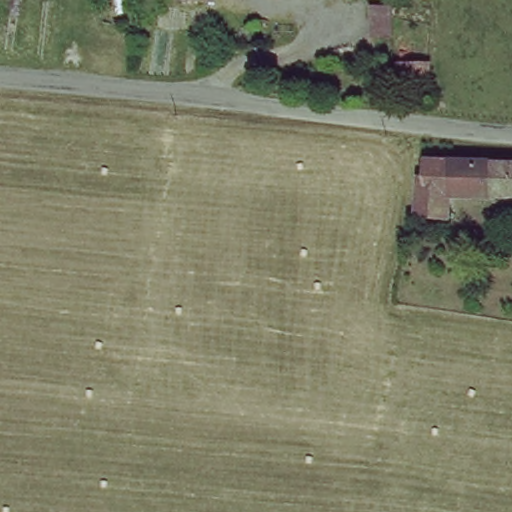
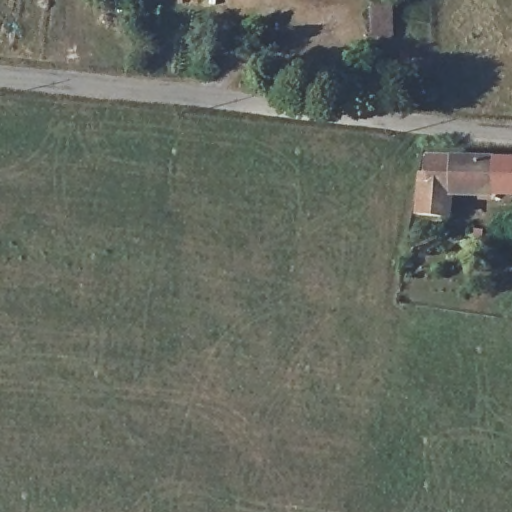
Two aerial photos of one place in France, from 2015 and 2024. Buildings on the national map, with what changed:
unchanged [(160,4),(160,0),(189,0),(188,6),(160,4)]
unchanged [(347,50),(349,18),(368,18),(365,51),(347,50)]
unchanged [(375,86),(374,67),(406,70),(406,89),(375,86)]
unchanged [(459,196),(459,223),(432,221),(432,180),(438,181),(439,161),(460,161),(459,196)]
unchanged [(459,196),(460,161),(512,162),(512,197),(459,196)]

